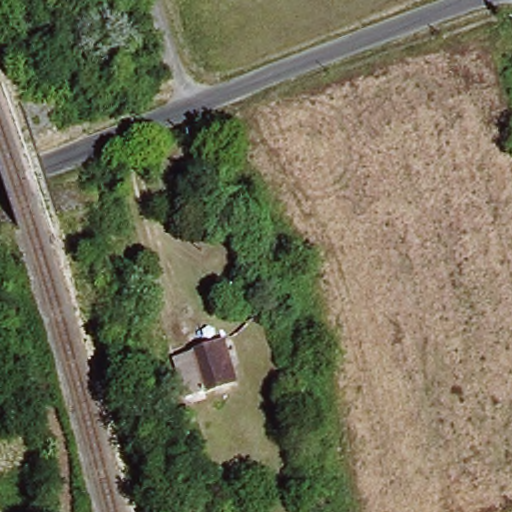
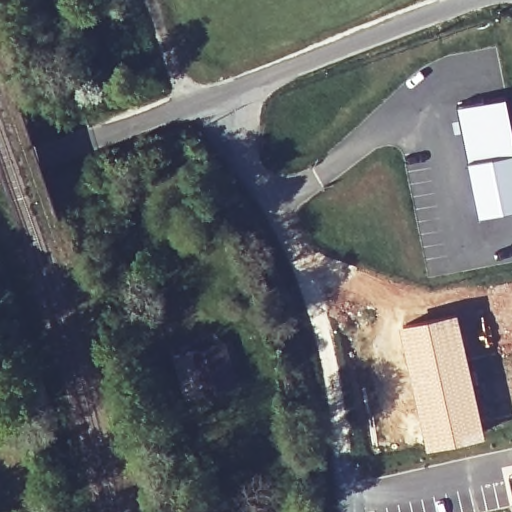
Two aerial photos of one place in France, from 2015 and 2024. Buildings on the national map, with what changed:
new [(508,96),(512,117),(512,209),(480,215),(458,105),(508,96)]
new [(466,360),(512,350),(512,415),(480,422),(482,432),(432,443),(405,328),(457,316),(466,360)]
unchanged [(199,394),(183,355),(230,335),(245,373),(199,394)]
new [(512,474),(512,490),(509,475),(512,474)]

